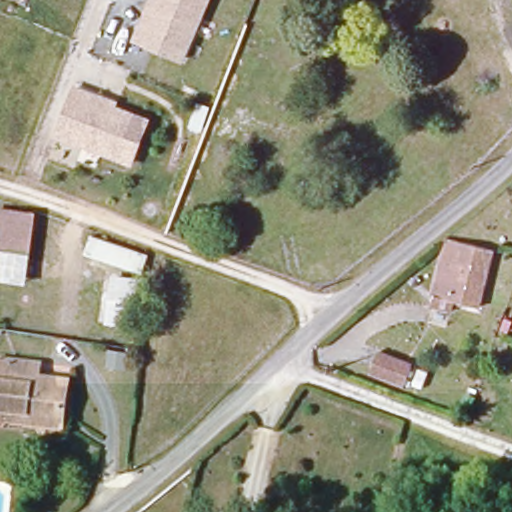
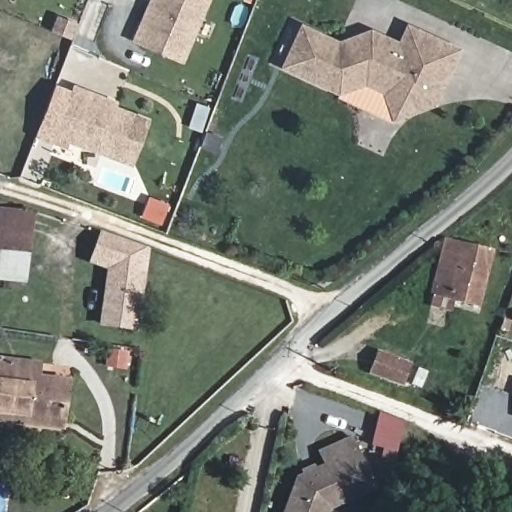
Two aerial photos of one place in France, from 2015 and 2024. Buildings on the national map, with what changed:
unchanged [(186,65),(135,42),(151,0),(155,1),(156,0),(211,0),(186,65)]
new [(436,106),(393,121),(340,95),(281,67),(301,24),(337,41),(371,29),(400,41),(408,24),(462,49),(436,106)]
unchanged [(120,98),(119,105),(151,117),(134,165),(54,140),(72,84),(120,98)]
unchanged [(22,255),(0,253),(0,213),(4,214),(28,216),(22,255)]
unchanged [(86,236),(146,256),(139,275),(84,257),(86,236)]
unchanged [(490,250),(476,305),(431,294),(446,239),(490,250)]
unchanged [(29,259),(25,286),(0,283),(0,255),(29,259)]
unchanged [(137,281),(133,325),(112,324),(117,280),(137,281)]
unchanged [(403,382),(370,371),(377,352),(410,363),(403,382)]
unchanged [(21,427),(0,424),(0,361),(6,362),(35,367),(34,381),(61,385),(55,422),(54,432),(21,427)]
new [(372,445),(380,415),(403,421),(393,472),(392,481),(377,478),(378,468),(382,448),(372,445)]
new [(377,491),(331,511),(331,512),(283,512),(295,478),(302,475),(301,471),(313,465),(315,469),(323,466),(318,451),(352,436),(377,491)]

